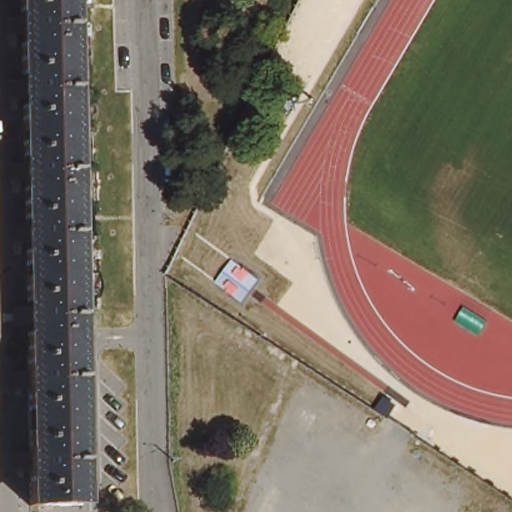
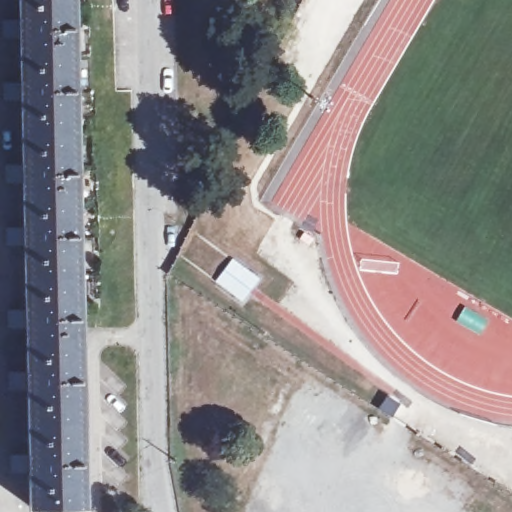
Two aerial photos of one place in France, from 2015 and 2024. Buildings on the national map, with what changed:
unchanged [(37,505),(35,466),(22,465),(21,453),(35,453),(35,382),(20,382),(20,371),(33,371),(33,321),(20,321),(19,308),(32,308),(31,238),(17,238),(17,227),(30,226),(30,176),(16,176),(16,162),(28,162),(27,93),(15,93),(14,80),(27,80),(27,31),(13,30),(12,17),(25,17),(25,0),(75,0),(85,504),(37,505)]
unchanged [(385,387),(395,394),(390,405),(378,398),(385,387)]

